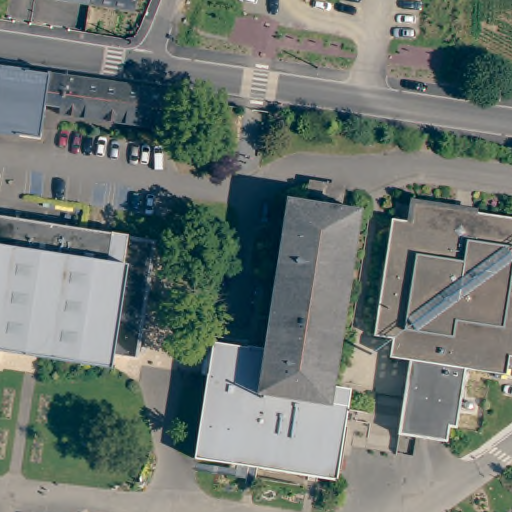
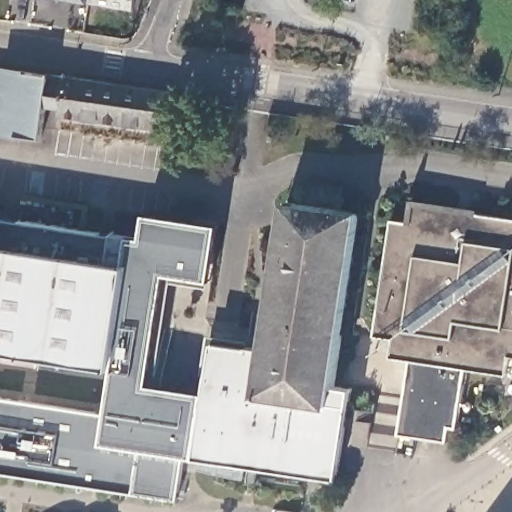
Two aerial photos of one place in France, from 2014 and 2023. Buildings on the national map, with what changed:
unchanged [(134,5),(100,0),(135,0),(134,5)]
unchanged [(36,102),(32,136),(0,132),(0,66),(29,70),(52,73),(48,104),(36,102)]
unchanged [(159,127),(47,111),(48,104),(52,73),(160,89),(159,127)]
unchanged [(302,201),(303,190),(338,196),(336,206),(355,209),(329,384),(346,386),(332,477),(190,456),(203,372),(211,373),(215,341),(243,345),(243,344),(259,346),(282,198),(302,201)]
unchanged [(456,207),(455,211),(470,214),(471,209),(512,216),(512,354),(509,354),(506,373),(465,366),(456,426),(449,424),(447,439),(398,432),(410,358),(390,355),(393,336),(374,333),(392,216),(410,219),(413,200),(456,207)]
new [(219,226),(211,280),(166,275),(149,385),(199,394),(190,456),(184,454),(178,501),(133,493),(0,473),(0,399),(107,416),(113,371),(115,356),(139,360),(157,243),(143,241),(147,214),(219,226)]
unchanged [(115,356),(113,371),(0,354),(0,357),(0,221),(19,224),(19,222),(157,243),(139,360),(115,356)]

